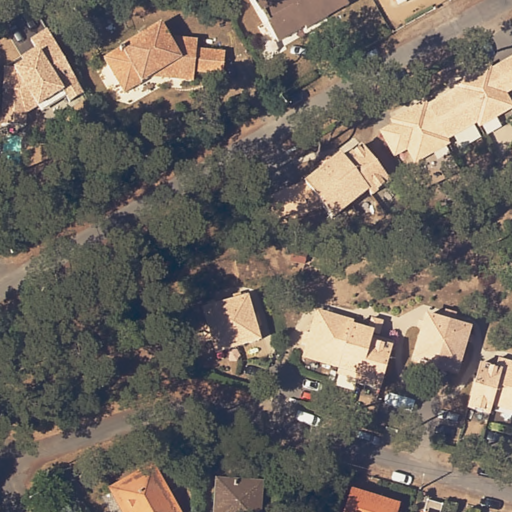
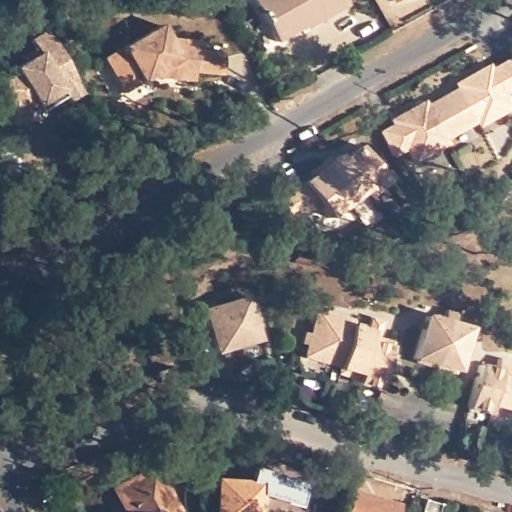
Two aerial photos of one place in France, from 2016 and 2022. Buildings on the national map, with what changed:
unchanged [(309,22),(282,38),(261,0),(351,0),(352,2),(311,25),(309,22)]
unchanged [(169,42),(175,40),(199,42),(198,51),(225,55),(223,76),(196,73),(195,83),(164,81),(159,74),(124,94),(104,60),(161,28),(169,42)]
unchanged [(69,101),(65,96),(41,113),(35,106),(28,112),(27,125),(2,124),(4,69),(23,60),(20,54),(32,47),(29,39),(48,29),(82,94),(69,101)]
unchanged [(433,154),(417,162),(410,149),(396,156),(383,132),(396,125),(394,121),(426,102),(429,107),(460,89),(458,85),(490,66),(493,71),(512,60),(512,91),(506,94),(512,103),(512,109),(499,116),(481,126),(479,122),(447,140),(450,145),(433,154)]
unchanged [(343,155),(347,160),(364,147),(391,181),(374,195),(370,190),(335,219),(325,206),(276,227),(266,201),(307,184),(343,155)]
unchanged [(249,315),(255,313),(258,325),(253,326),(256,340),(213,353),(210,340),(204,341),(201,330),(206,328),(201,310),(244,298),(249,315)]
unchanged [(307,352),(309,345),(304,344),(307,333),(313,335),(319,311),(356,321),(354,326),(370,331),(374,318),(384,321),(380,335),(375,333),(373,341),(394,347),(382,390),(359,384),(362,375),(341,370),(341,367),(325,363),(306,357),(307,352)]
unchanged [(443,315),(454,319),(450,330),(466,334),(453,376),(411,364),(423,321),(440,326),(443,315)]
unchanged [(494,405),(491,414),(469,408),(481,366),(496,370),(499,360),(512,363),(512,410),(494,405)]
unchanged [(167,512),(116,512),(106,496),(145,474),(167,512)]
unchanged [(257,512),(213,512),(213,505),(215,481),(222,481),(259,483),(257,512)]
unchanged [(396,512),(344,512),(350,491),(397,506),(396,512)]
unchanged [(430,497),(445,502),(443,512),(426,512),(430,497)]

